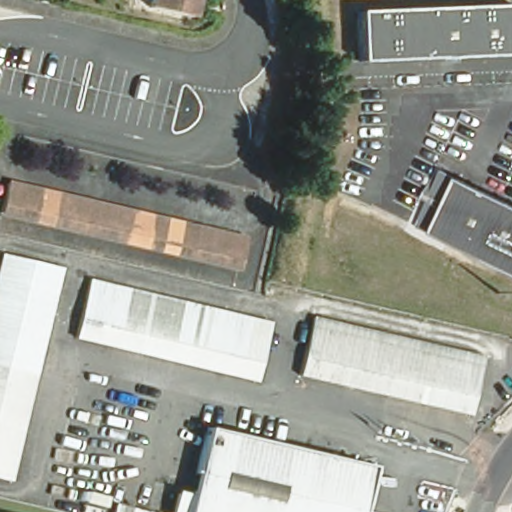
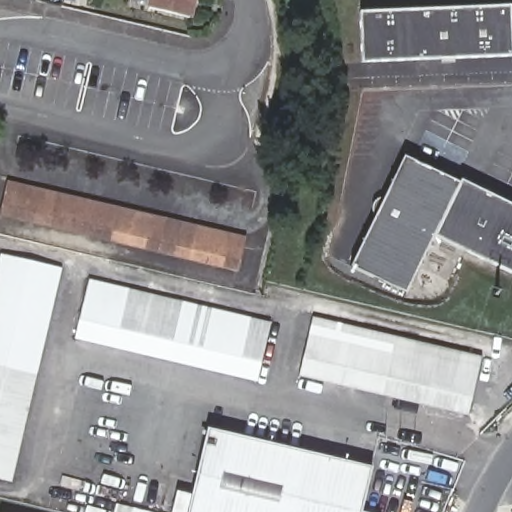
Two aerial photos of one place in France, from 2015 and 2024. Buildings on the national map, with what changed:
unchanged [(190,20),(149,10),(151,0),(195,0),(190,20)]
unchanged [(512,5),(512,55),(364,62),(362,12),(512,5)]
new [(404,157),(443,177),(416,233),(431,240),(405,292),(350,266),(404,157)]
unchanged [(443,177),(482,195),(512,210),(512,279),(466,257),(431,240),(416,233),(443,177)]
unchanged [(237,270),(0,216),(0,214),(7,184),(244,239),(237,270)]
unchanged [(0,345),(0,255),(59,269),(39,355),(16,350),(0,345)]
unchanged [(269,325),(255,381),(74,338),(86,282),(269,325)]
unchanged [(480,360),(466,420),(295,380),(310,319),(480,360)]
unchanged [(35,375),(9,484),(0,482),(0,345),(16,350),(39,355),(34,375),(35,375)]
unchanged [(358,510),(364,512),(185,512),(189,491),(204,429),(368,467),(358,510)]
unchanged [(189,491),(185,512),(170,512),(177,488),(189,491)]
unchanged [(112,512),(114,503),(154,512),(112,512)]

